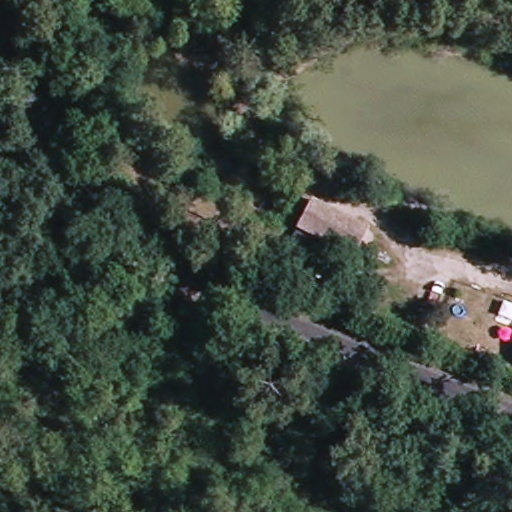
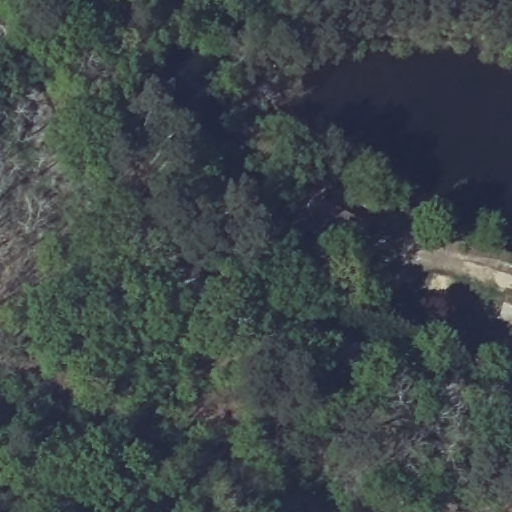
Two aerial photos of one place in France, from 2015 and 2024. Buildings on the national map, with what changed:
unchanged [(368,230),(371,230),(354,261),(298,232),(314,202),(368,230)]

